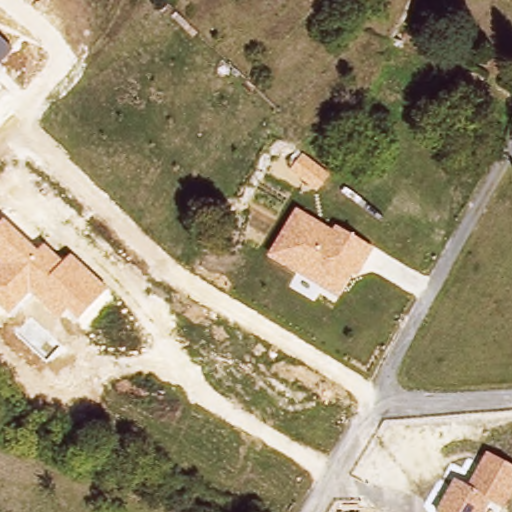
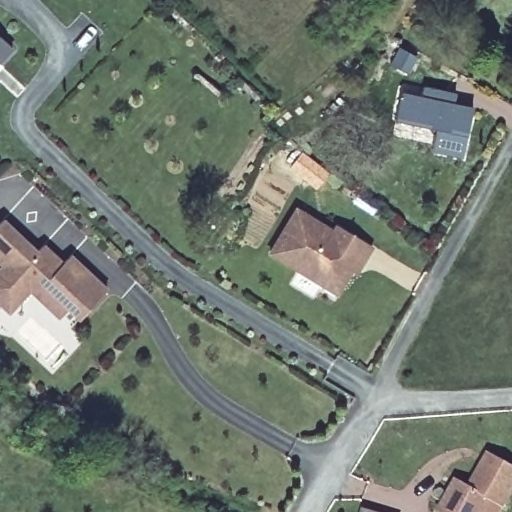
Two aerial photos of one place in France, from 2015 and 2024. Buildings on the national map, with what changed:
unchanged [(0,64),(0,36),(13,48),(0,64)]
new [(462,155),(433,149),(438,128),(398,119),(403,91),(422,95),(425,84),(457,91),(454,101),(473,106),(462,155)]
new [(302,154),(326,173),(315,187),(291,168),(302,154)]
unchanged [(267,253),(295,208),(332,229),(335,223),(374,247),(360,273),(348,276),(338,295),(316,282),(311,290),(295,281),(300,273),(267,253)]
unchanged [(44,243),(65,261),(71,254),(109,288),(81,320),(68,308),(59,318),(30,292),(10,315),(0,306),(0,267),(1,265),(0,264),(0,223),(4,218),(38,249),(44,243)]
unchanged [(469,484),(487,448),(512,462),(512,497),(506,509),(491,501),(486,512),(436,512),(453,477),(469,484)]
new [(382,512),(361,512),(362,506),(382,512)]

